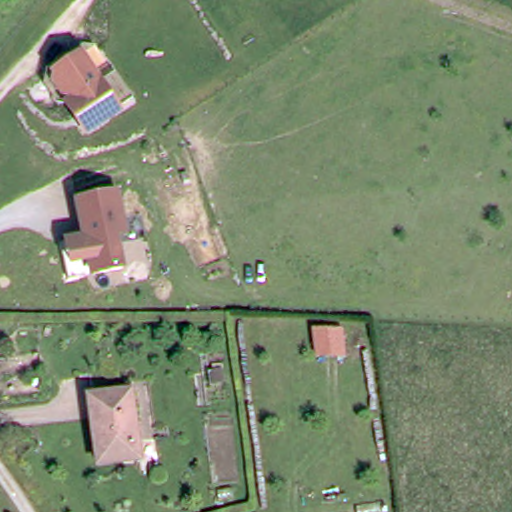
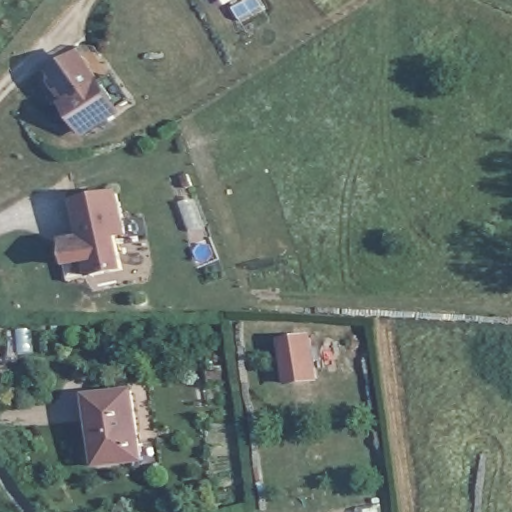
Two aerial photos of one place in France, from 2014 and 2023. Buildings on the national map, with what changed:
unchanged [(79,119),(70,105),(76,101),(73,95),(65,94),(58,83),(59,76),(58,74),(82,57),(101,84),(116,74),(134,101),(119,111),(92,130),(89,133),(79,119)]
unchanged [(128,234),(118,235),(125,269),(71,281),(63,244),(88,239),(80,202),(118,193),(128,234)]
new [(311,334),(318,382),(285,388),(277,340),(311,334)]
unchanged [(89,398),(129,393),(138,460),(98,465),(89,398)]

